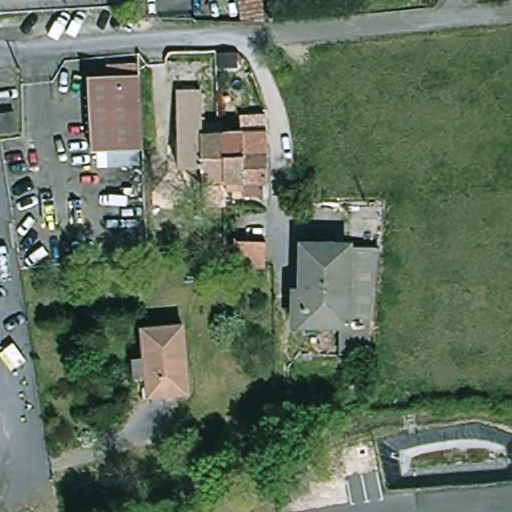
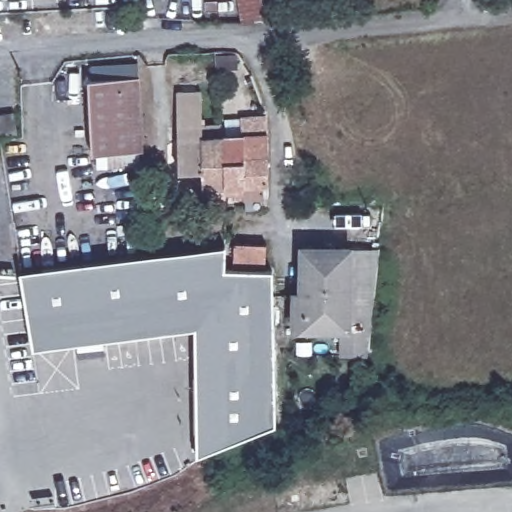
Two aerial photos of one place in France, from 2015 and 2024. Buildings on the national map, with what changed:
unchanged [(251,36),(251,30),(246,0),(268,0),(272,25),(274,32),(251,36)]
unchanged [(114,170),(113,156),(99,156),(95,81),(146,79),(150,153),(146,154),(147,168),(114,170)]
unchanged [(204,173),(180,174),(178,93),(203,93),(204,127),(222,126),(222,137),(228,137),(268,135),(268,162),(267,184),(263,184),(263,200),(246,201),(246,196),(230,197),(230,189),(228,190),(204,190),(204,173)]
unchanged [(0,112),(16,109),(19,130),(0,133),(0,112)]
new [(195,328),(33,348),(20,270),(226,246),(225,270),(261,270),(260,261),(239,260),(240,236),(272,237),(272,261),(271,271),(274,269),(276,426),(197,456),(195,328)]
demolished [(272,237),(272,261),(271,271),(261,270),(260,261),(239,260),(240,236),(272,237)]
unchanged [(381,246),(370,354),(341,354),(341,330),(293,328),(293,288),(300,288),(300,243),(381,246)]
demolished [(137,379),(135,358),(147,357),(144,328),(185,324),(190,393),(151,397),(149,378),(137,379)]
demolished [(512,443),(512,512),(472,512),(462,451),(512,443)]
demolished [(340,460),(363,456),(405,450),(410,479),(366,486),(345,489),(340,460)]

